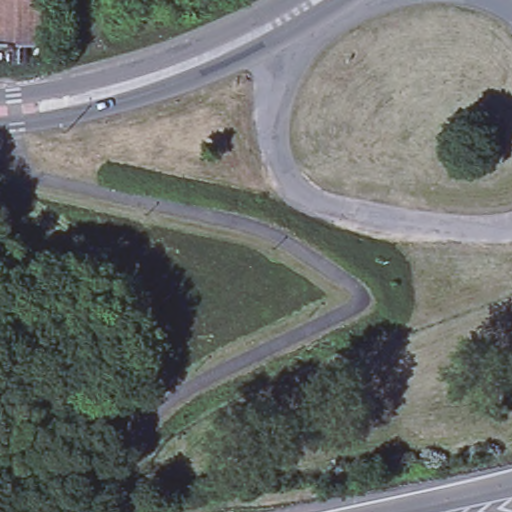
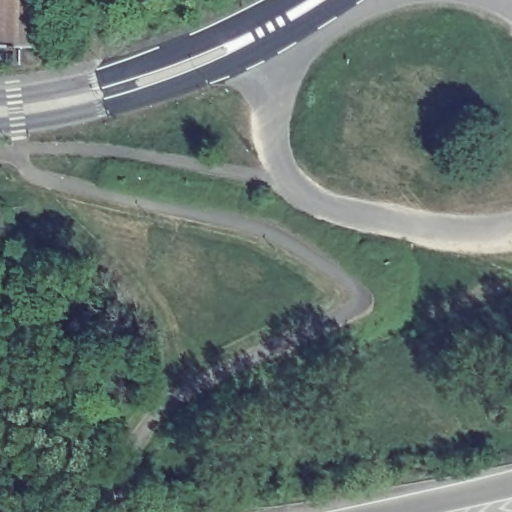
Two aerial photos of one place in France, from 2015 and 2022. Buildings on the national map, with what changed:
unchanged [(17,41),(11,41),(11,39),(0,39),(0,0),(49,0),(47,40),(17,39),(17,41)]

